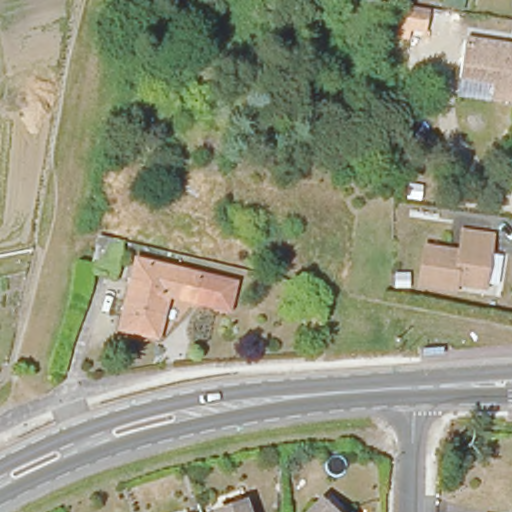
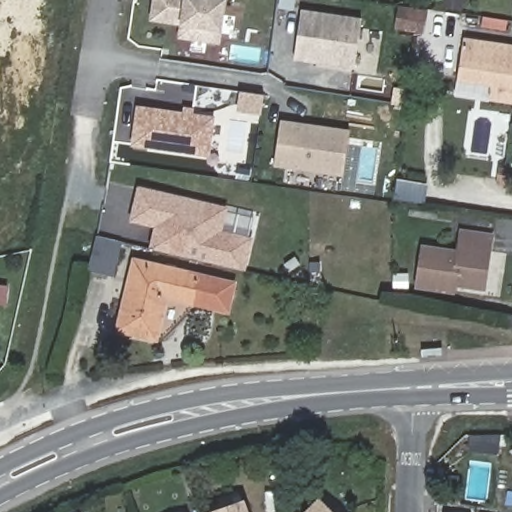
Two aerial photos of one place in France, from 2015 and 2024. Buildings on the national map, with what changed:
new [(180,37),(181,25),(151,20),(155,0),(225,0),(220,44),(180,37)]
unchanged [(428,30),(403,26),(406,8),(431,12),(428,30)]
new [(356,67),(296,59),(301,11),(361,19),(356,67)]
unchanged [(493,84),(494,79),(455,72),(461,38),(462,34),(512,42),(512,96),(491,92),(493,84)]
new [(265,95),(262,116),(238,113),(240,92),(265,95)]
new [(211,157),(131,146),(137,105),(182,111),(184,106),(195,108),(195,113),(216,116),(211,157)]
new [(274,165),(281,119),(350,129),(343,176),(274,165)]
demolished [(136,159),(116,155),(121,132),(140,137),(136,159)]
new [(153,225),(130,221),(137,185),(260,215),(246,271),(150,249),(153,225)]
unchanged [(481,283),(462,280),(460,287),(413,281),(417,243),(453,248),(456,224),(488,229),(481,283)]
unchanged [(90,264),(94,246),(96,235),(123,242),(124,242),(115,278),(89,272),(90,264)]
unchanged [(231,312),(168,298),(157,338),(120,329),(130,286),(135,261),(146,263),(237,284),(231,312)]
unchanged [(319,320),(315,334),(296,328),(300,314),(319,320)]
unchanged [(210,510),(209,508),(237,498),(242,512),(204,512),(210,510)]
unchanged [(322,504),(328,512),(313,512),(322,504)]

